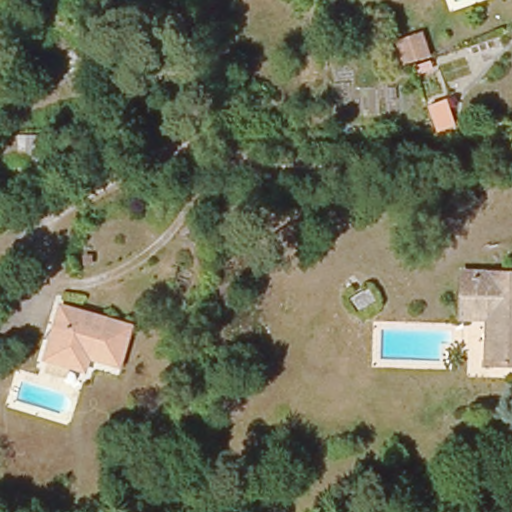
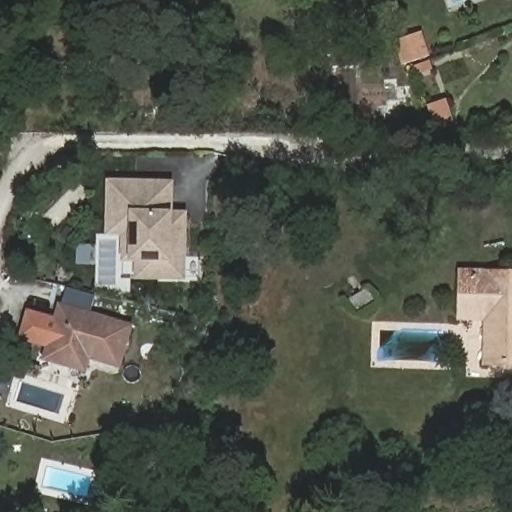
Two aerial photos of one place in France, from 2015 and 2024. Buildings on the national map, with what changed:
unchanged [(420,31),(428,56),(417,60),(409,35),(420,31)]
unchanged [(450,98),(461,129),(440,136),(430,104),(450,98)]
unchanged [(40,162),(0,162),(0,137),(40,137),(40,162)]
new [(138,259),(119,259),(120,234),(109,233),(109,227),(110,182),(170,184),(170,214),(185,214),(184,221),(183,278),(162,278),(162,275),(137,274),(138,259)]
unchanged [(486,364),(487,318),(465,317),(465,299),(461,299),(461,274),(512,275),(512,365),(486,364)]
unchanged [(119,366),(77,354),(73,366),(45,358),(60,305),(130,327),(119,366)]

